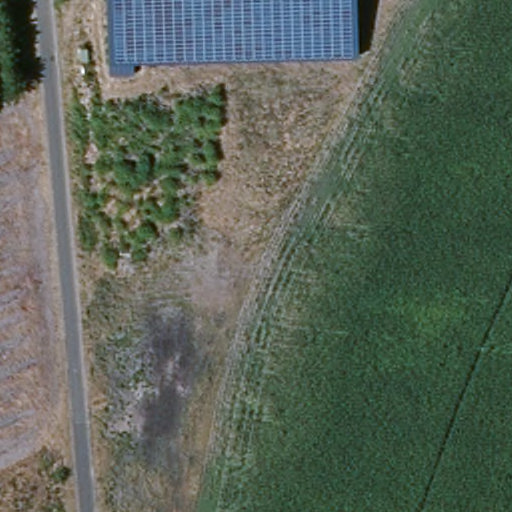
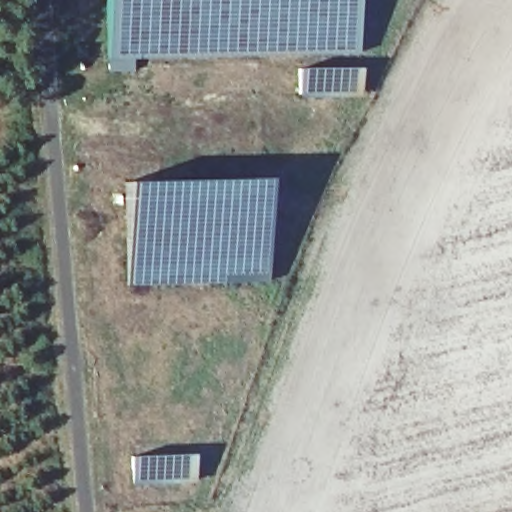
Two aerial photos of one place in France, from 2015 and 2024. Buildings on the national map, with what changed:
unchanged [(358,52),(239,55),(107,60),(107,50),(106,0),(356,0),(358,52)]
new [(357,71),(357,98),(300,97),(299,70),(357,71)]
new [(125,181),(263,179),(267,280),(127,284),(125,181)]
new [(192,456),(193,486),(131,487),(130,458),(192,456)]

